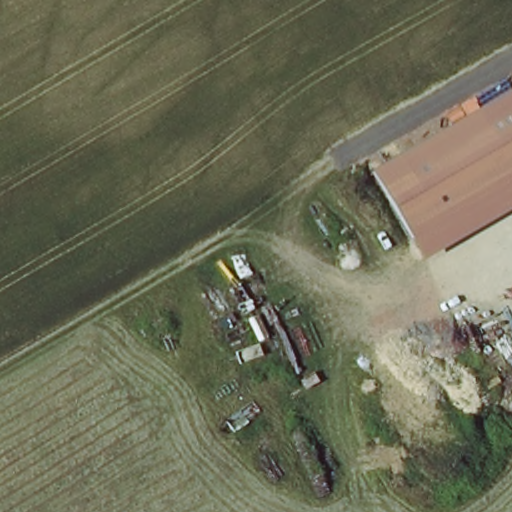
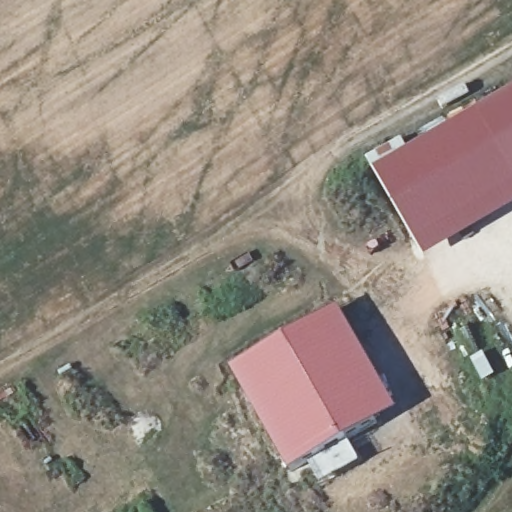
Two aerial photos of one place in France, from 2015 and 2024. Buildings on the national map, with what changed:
unchanged [(374,169),(512,90),(512,207),(423,258),(374,169)]
new [(339,306),(399,410),(291,473),(230,368),(339,306)]

